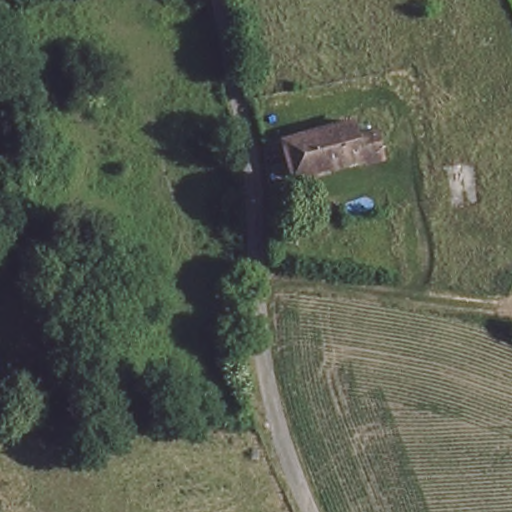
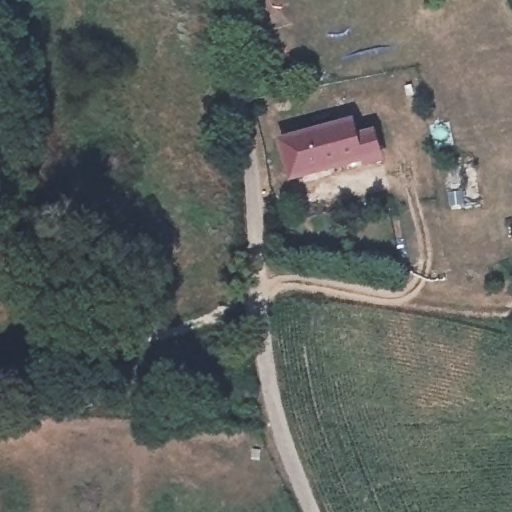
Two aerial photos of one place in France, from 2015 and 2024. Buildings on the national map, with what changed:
unchanged [(357,125),(363,138),(379,135),(385,154),(265,186),(265,149),(357,125)]

